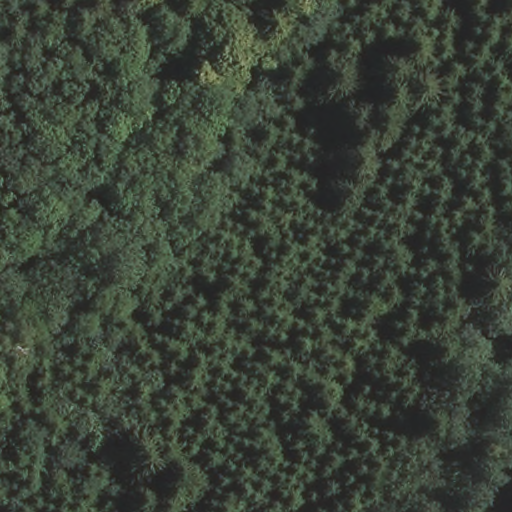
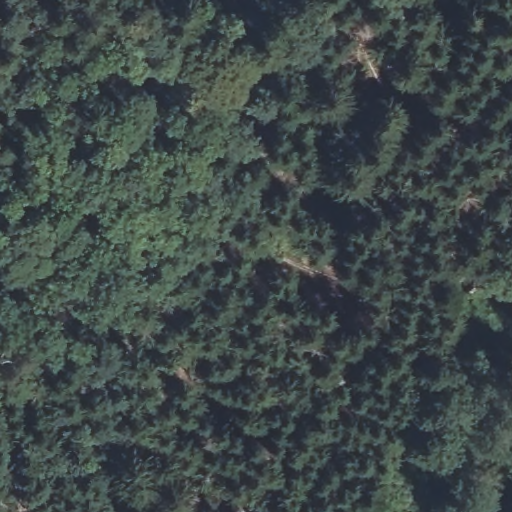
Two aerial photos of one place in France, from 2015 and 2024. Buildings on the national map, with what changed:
unchanged [(442,8),(442,0),(469,0),(469,6),(442,8)]
unchanged [(58,40),(81,46),(115,58),(99,98),(78,91),(73,103),(51,96),(55,80),(45,76),(58,40)]

